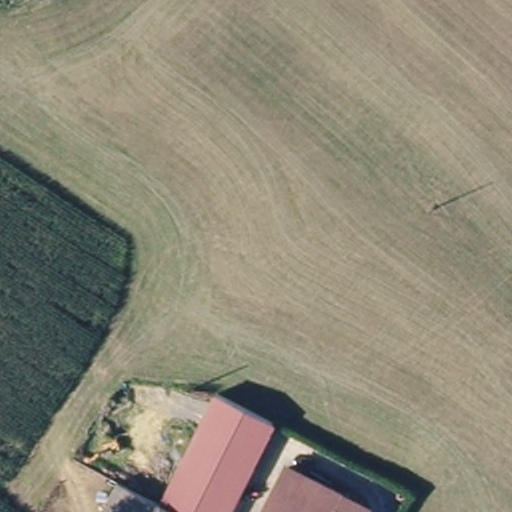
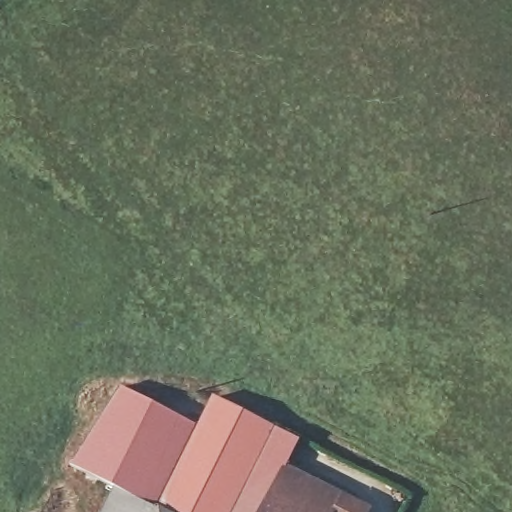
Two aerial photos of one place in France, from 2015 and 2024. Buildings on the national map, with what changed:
new [(192,447),(157,512),(150,512),(105,488),(108,483),(70,465),(120,388),(201,430),(192,447)]
unchanged [(275,427),(257,460),(201,430),(220,397),(275,427)]
new [(257,460),(275,427),(299,440),(286,469),(292,473),(272,512),(228,512),(257,460)]
unchanged [(192,447),(201,430),(257,460),(228,512),(157,512),(192,447)]
unchanged [(363,512),(272,512),(292,473),(363,512)]
unchanged [(105,488),(150,512),(92,512),(105,488)]

